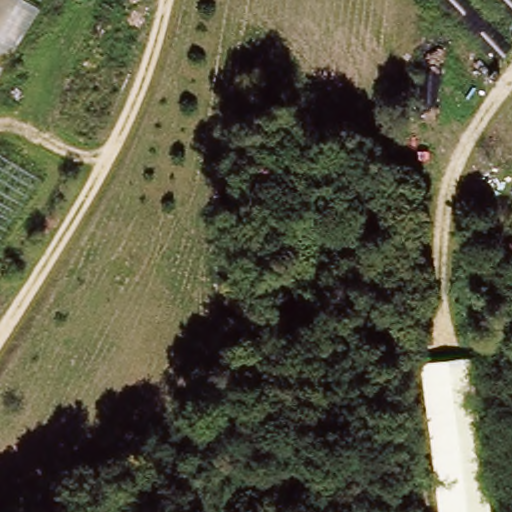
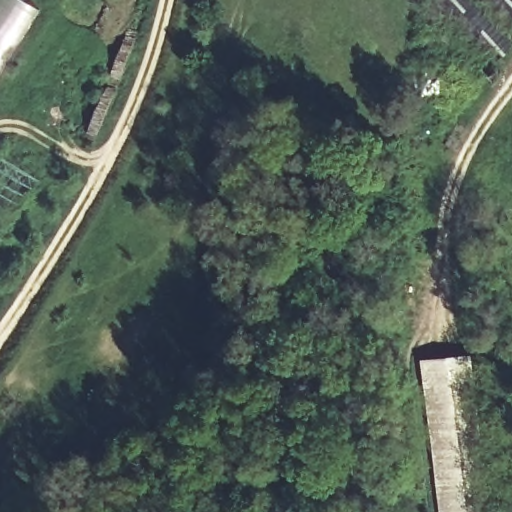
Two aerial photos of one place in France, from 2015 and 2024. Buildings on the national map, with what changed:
unchanged [(54,10),(0,98),(0,7),(4,0),(36,0),(54,10)]
unchanged [(68,160),(7,261),(0,257),(0,170),(22,133),(68,160)]
unchanged [(441,512),(421,362),(472,356),(492,512),(441,512)]

